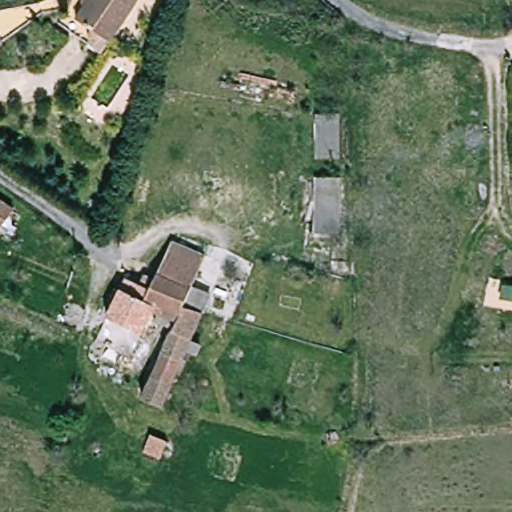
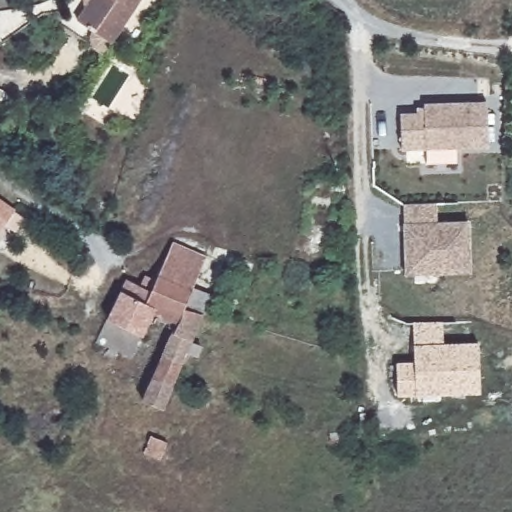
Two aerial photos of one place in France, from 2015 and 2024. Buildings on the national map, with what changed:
unchanged [(69,30),(95,1),(94,0),(149,0),(99,57),(69,30)]
new [(400,112),(417,112),(417,106),(424,105),(424,102),(487,101),(489,146),(404,150),(400,112)]
demolished [(290,136),(258,131),(261,109),(293,112),(290,136)]
demolished [(317,116),(337,116),(339,160),(318,160),(317,116)]
demolished [(316,181),(342,182),(341,234),(314,234),(316,181)]
unchanged [(18,211),(12,221),(6,217),(0,225),(0,199),(18,211)]
new [(405,258),(404,204),(437,203),(437,222),(468,222),(470,272),(434,272),(405,273),(405,258)]
unchanged [(185,315),(181,314),(177,325),(150,312),(138,340),(108,323),(126,284),(139,291),(146,277),(157,284),(177,244),(209,260),(203,270),(196,288),(212,296),(202,320),(185,315)]
unchanged [(201,326),(191,346),(201,351),(195,365),(185,361),(173,389),(162,413),(145,405),(177,325),(181,314),(201,326)]
new [(414,361),(412,344),(412,322),(442,321),(443,343),(479,342),(480,393),(415,395),(397,396),(395,362),(414,361)]
unchanged [(163,461),(147,455),(154,440),(168,446),(163,461)]

